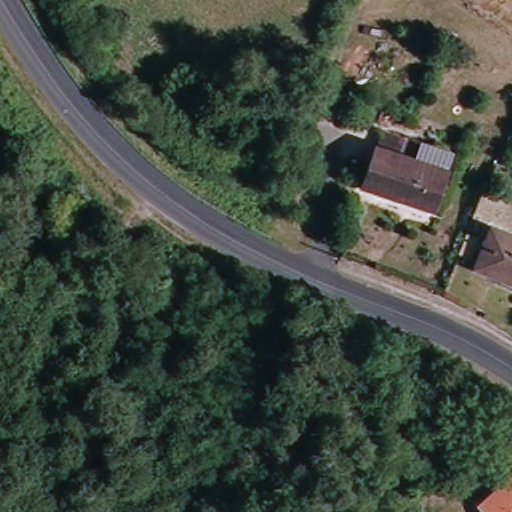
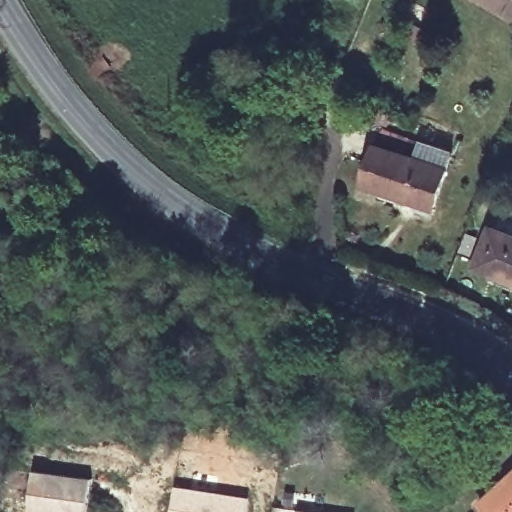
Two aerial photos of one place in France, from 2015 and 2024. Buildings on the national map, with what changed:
unchanged [(459,166),(443,208),(373,181),(389,140),(459,166)]
unchanged [(503,276),(505,272),(487,264),(502,225),(512,229),(512,280),(503,276)]
new [(89,476),(84,512),(34,512),(27,511),(33,469),(89,476)]
unchanged [(499,512),(491,502),(512,483),(512,512),(499,512)]
new [(250,496),(247,512),(170,512),(174,484),(250,496)]
new [(311,512),(297,512),(298,510),(311,512)]

